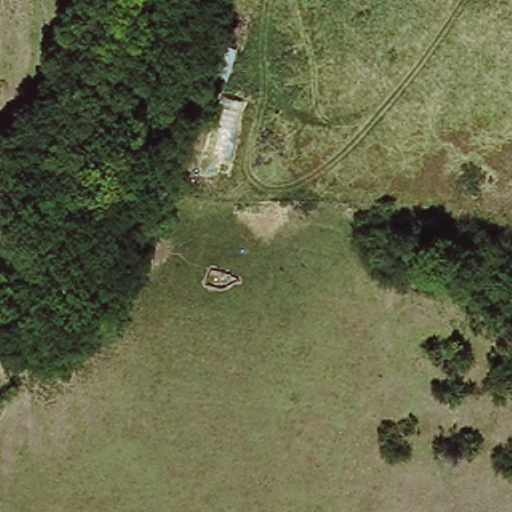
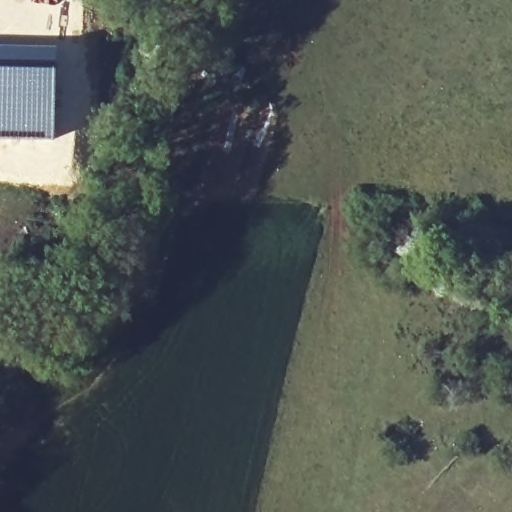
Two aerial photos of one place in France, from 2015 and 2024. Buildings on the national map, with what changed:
new [(58,46),(55,141),(0,137),(0,45),(58,46)]

